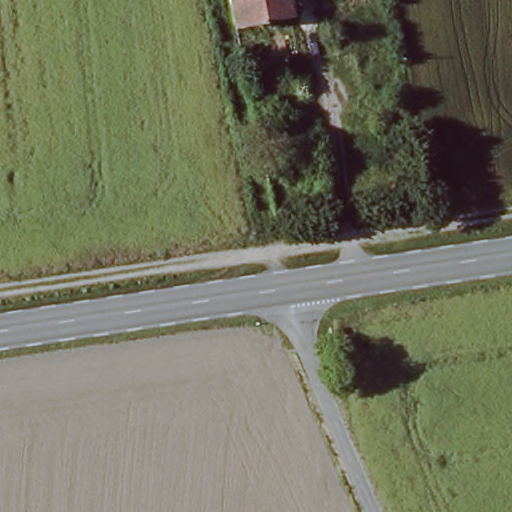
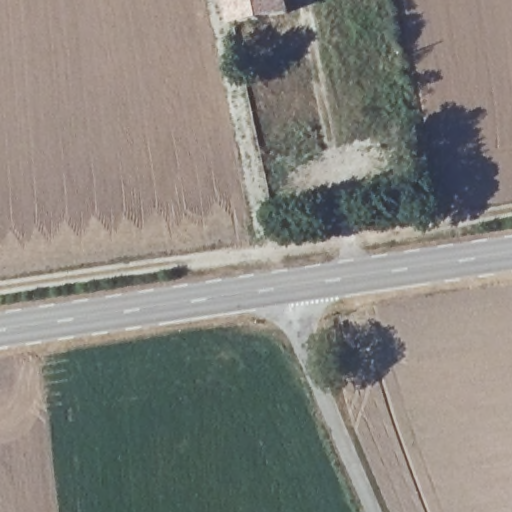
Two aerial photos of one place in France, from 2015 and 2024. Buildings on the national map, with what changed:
unchanged [(231,25),(226,0),(283,0),(285,15),(231,25)]

